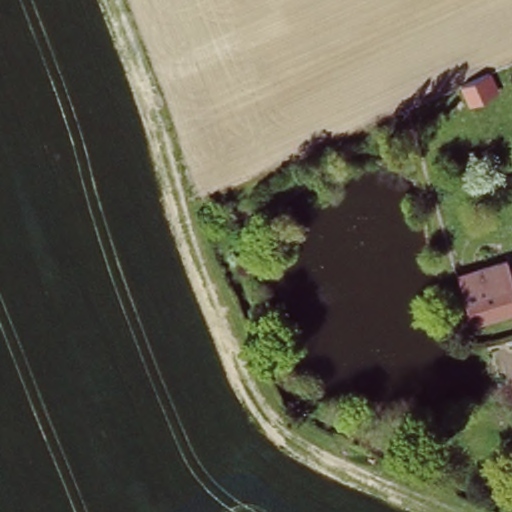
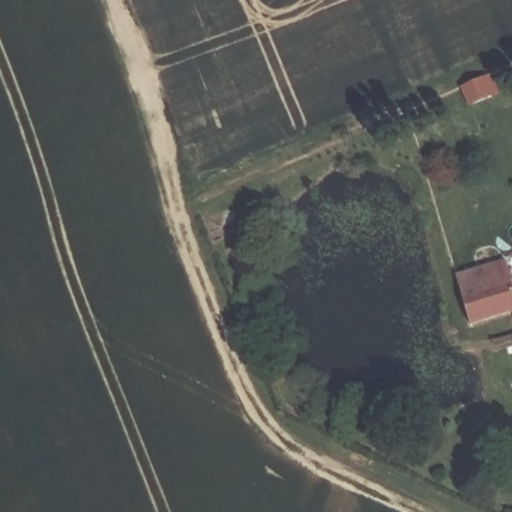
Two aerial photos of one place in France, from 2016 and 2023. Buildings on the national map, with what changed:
unchanged [(460,278),(502,262),(512,289),(512,314),(476,325),(460,278)]

